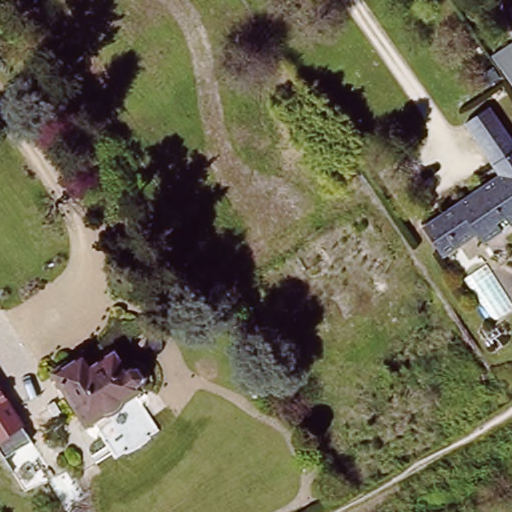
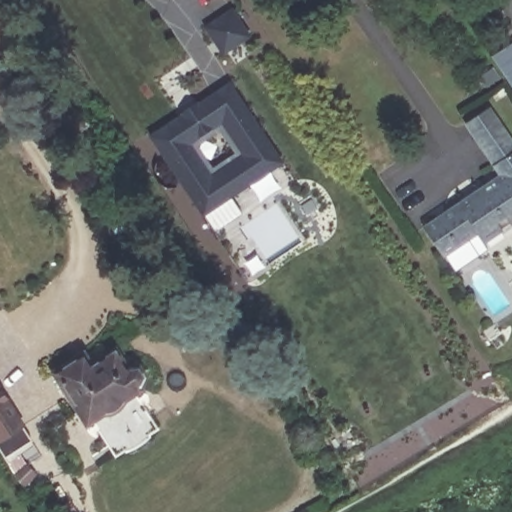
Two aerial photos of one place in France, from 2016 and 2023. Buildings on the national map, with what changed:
unchanged [(491,54),(512,39),(512,84),(491,54)]
new [(231,83),(283,162),(202,215),(149,136),(231,83)]
unchanged [(501,176),(465,125),(487,110),(512,146),(512,226),(487,243),(460,205),(501,176)]
unchanged [(483,246),(476,237),(444,260),(424,231),(460,205),(487,243),(483,246)]
unchanged [(53,374),(82,356),(88,366),(113,351),(122,365),(137,364),(144,375),(139,395),(122,406),(121,408),(111,415),(105,416),(86,427),(53,374)]
unchanged [(0,445),(0,392),(24,430),(0,445)]

